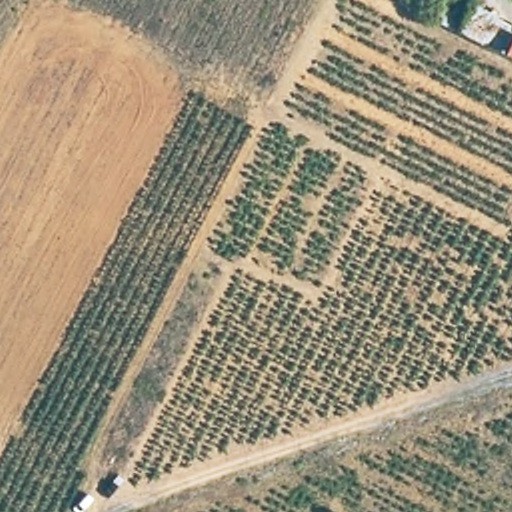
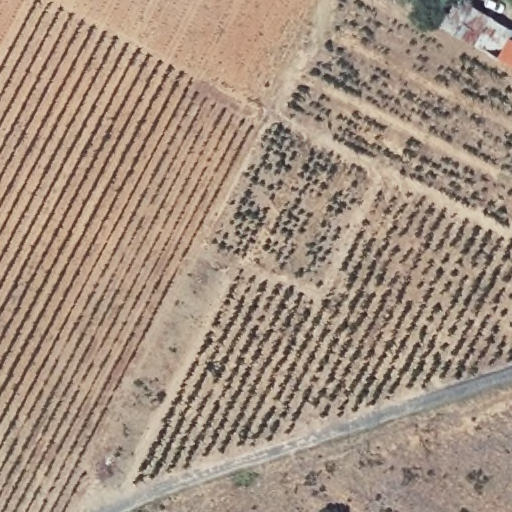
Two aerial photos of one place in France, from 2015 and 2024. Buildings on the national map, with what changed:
unchanged [(501,58),(451,31),(467,0),(512,22),(512,64),(501,58)]

